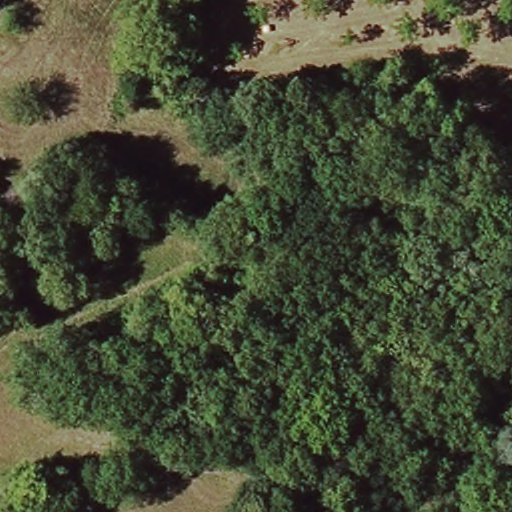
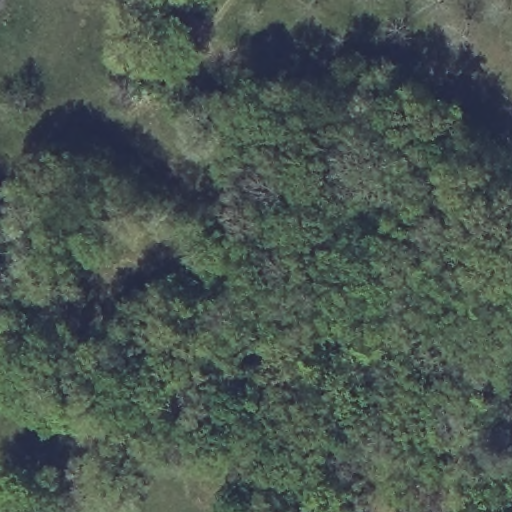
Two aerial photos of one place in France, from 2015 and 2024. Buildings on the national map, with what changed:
[]

